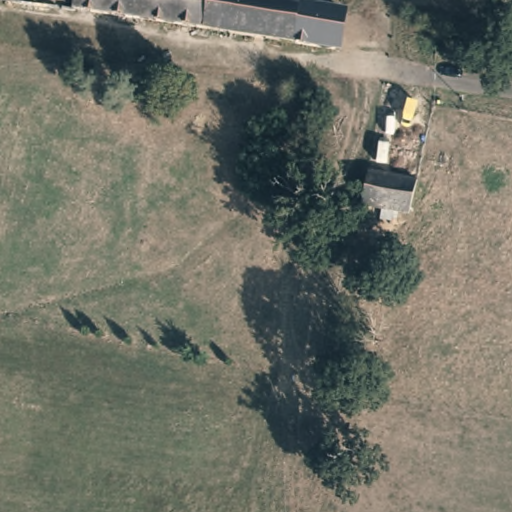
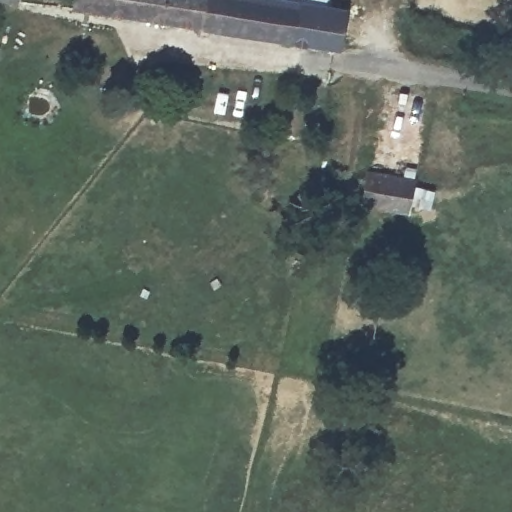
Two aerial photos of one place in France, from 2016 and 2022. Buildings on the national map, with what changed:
unchanged [(19,1),(15,0),(20,0),(19,1)]
unchanged [(343,7),(337,46),(75,6),(76,0),(304,0),(343,7)]
unchanged [(410,210),(364,198),(370,167),(419,177),(410,210)]

